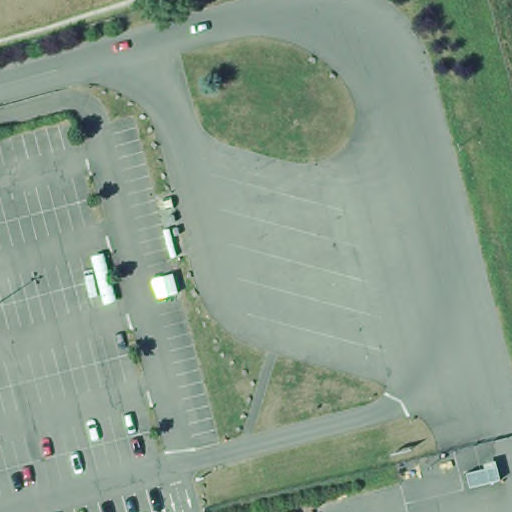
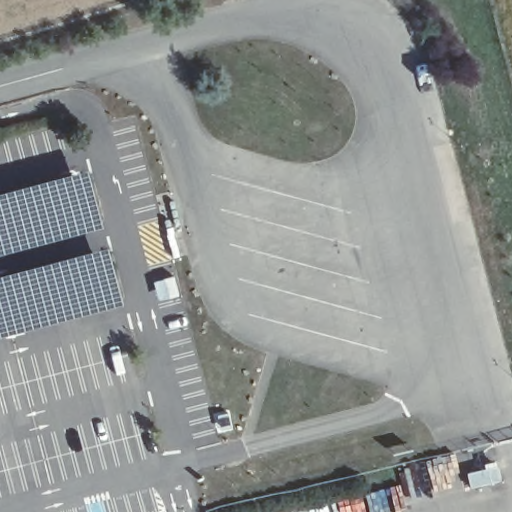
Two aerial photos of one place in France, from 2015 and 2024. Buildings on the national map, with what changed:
new [(88,170),(103,227),(0,254),(0,193),(88,170)]
new [(107,247),(122,304),(0,336),(0,275),(107,247)]

